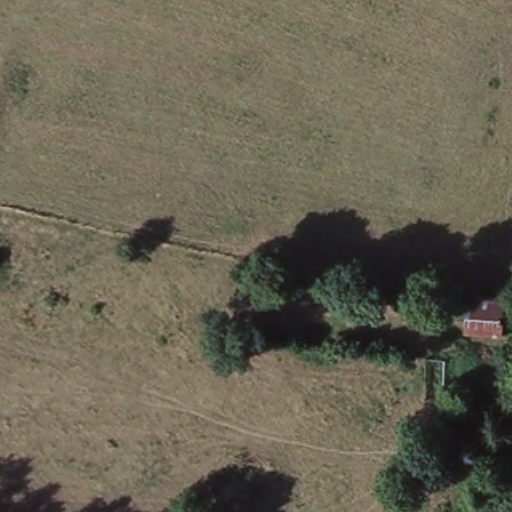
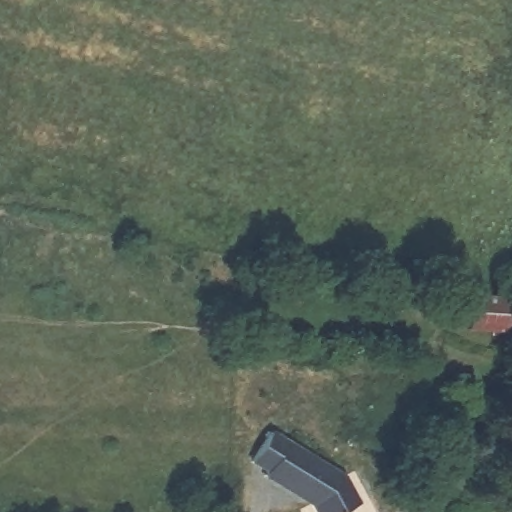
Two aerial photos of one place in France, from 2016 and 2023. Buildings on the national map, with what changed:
unchanged [(509,336),(468,330),(474,297),(512,302),(512,331),(510,331),(509,336)]
new [(362,500),(341,512),(325,512),(318,500),(307,493),(306,497),(271,479),(275,473),(258,464),(273,436),(346,474),(362,500)]

